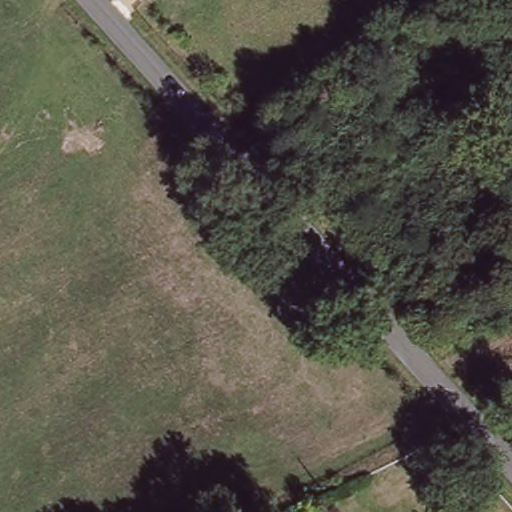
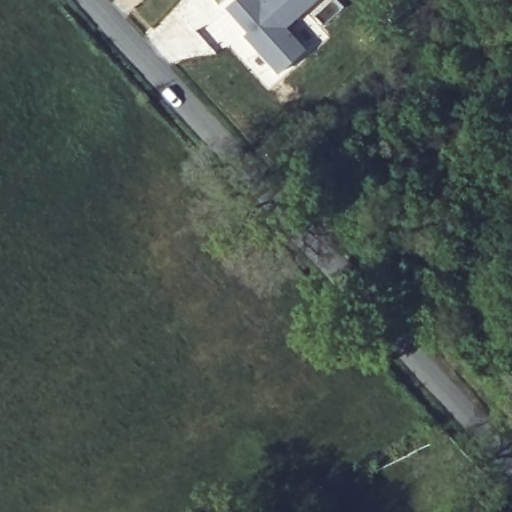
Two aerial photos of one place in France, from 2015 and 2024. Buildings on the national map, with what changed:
new [(227,7),(234,0),(316,0),(287,26),(306,49),(279,72),(245,35),(248,32),(227,7)]

